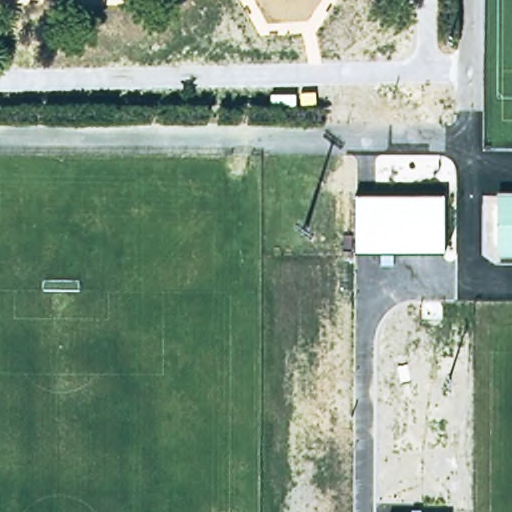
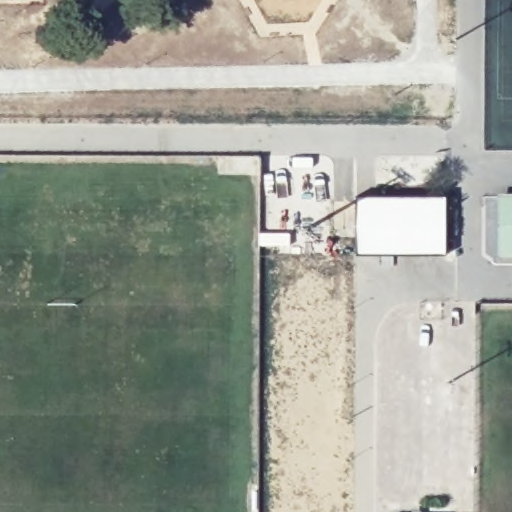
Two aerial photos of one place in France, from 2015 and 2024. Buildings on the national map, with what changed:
unchanged [(502,256),(502,197),(512,198),(512,256),(502,256)]
unchanged [(445,198),(444,253),(357,253),(357,198),(445,198)]

